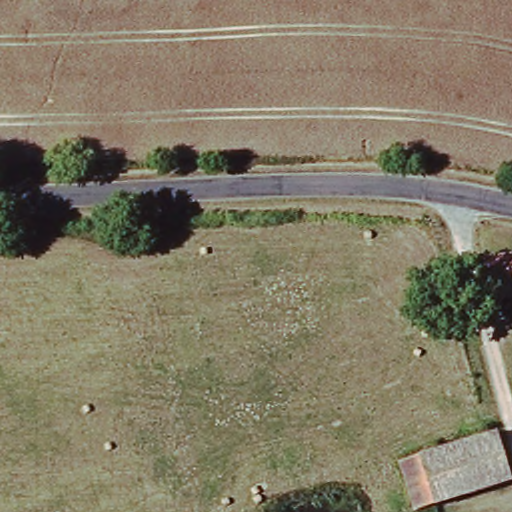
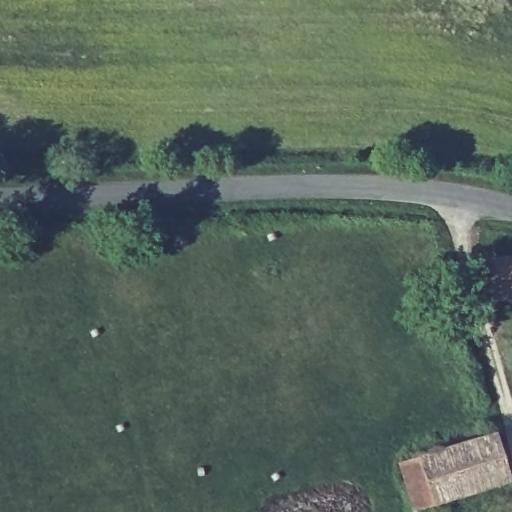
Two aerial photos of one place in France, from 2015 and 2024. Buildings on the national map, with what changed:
unchanged [(494,259),(512,258),(512,300),(497,302),(494,259)]
unchanged [(401,462),(420,457),(499,433),(512,478),(512,480),(435,505),(425,508),(416,511),(401,462)]

